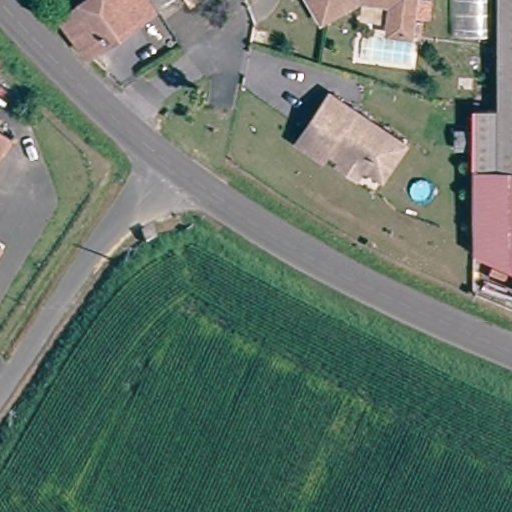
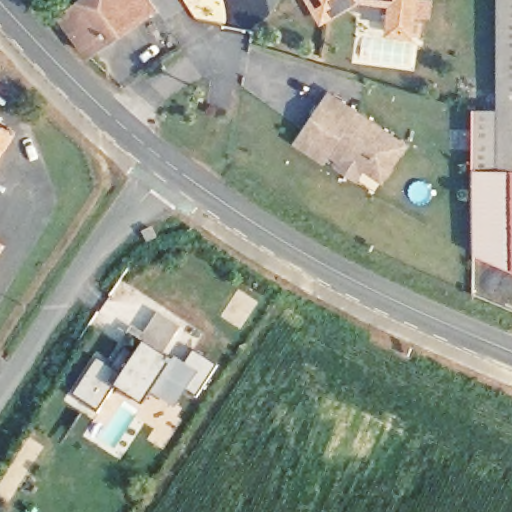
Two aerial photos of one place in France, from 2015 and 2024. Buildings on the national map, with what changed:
unchanged [(49,31),(91,0),(130,0),(145,21),(79,69),(49,31)]
unchanged [(157,0),(162,7),(145,21),(130,0),(157,0)]
unchanged [(385,4),(351,1),(331,13),(315,23),(301,0),(406,0),(402,36),(382,34),(385,4)]
demolished [(447,27),(448,0),(483,0),(481,29),(447,27)]
unchanged [(469,247),(465,104),(490,103),(491,103),(491,99),(489,0),(512,0),(512,263),(495,256),(469,247)]
unchanged [(335,155),(338,150),(325,142),(320,150),(303,139),(293,133),(310,108),(325,84),(402,133),(380,168),(361,156),(354,168),(335,155)]
unchanged [(15,139),(0,159),(0,128),(15,139)]
new [(199,396),(190,389),(177,406),(156,390),(145,405),(117,387),(100,410),(76,394),(100,357),(110,364),(136,325),(147,333),(161,313),(184,326),(165,354),(176,361),(186,363),(196,348),(220,364),(199,396)]

